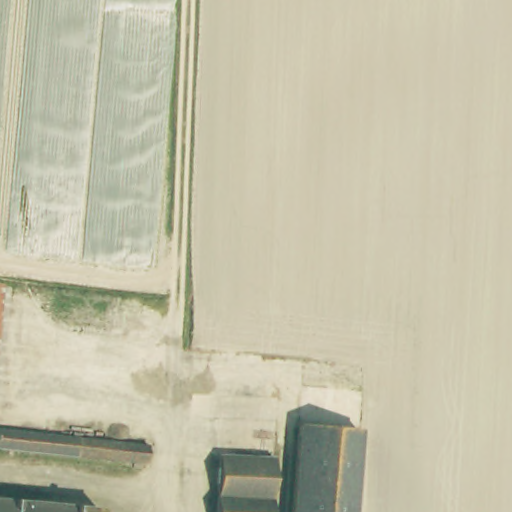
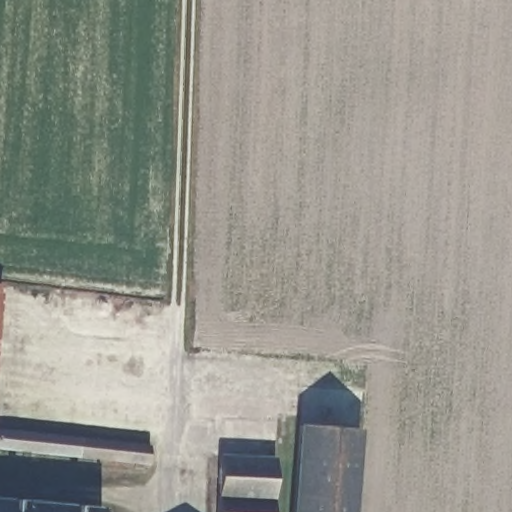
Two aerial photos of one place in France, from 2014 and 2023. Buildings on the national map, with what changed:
unchanged [(5,290),(0,338),(0,290),(5,290)]
unchanged [(362,432),(355,512),(297,512),(301,459),(305,426),(362,432)]
unchanged [(156,450),(155,462),(149,461),(148,469),(0,451),(0,433),(156,450)]
unchanged [(273,512),(221,512),(226,458),(277,463),(273,512)]
unchanged [(67,512),(0,512),(0,506),(67,512)]

